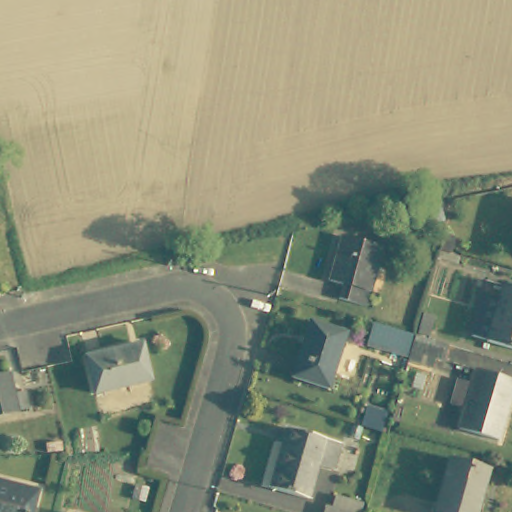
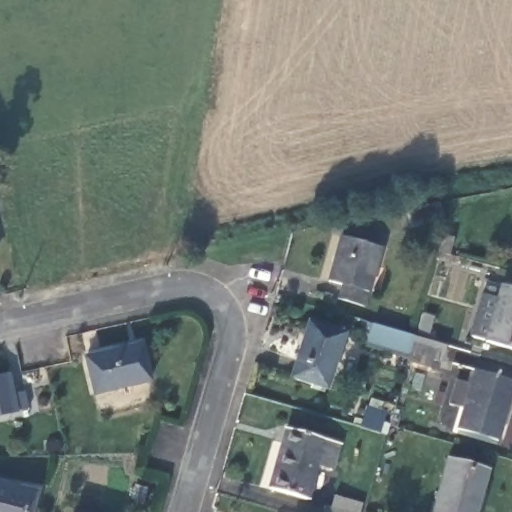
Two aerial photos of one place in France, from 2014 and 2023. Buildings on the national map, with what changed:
unchanged [(411,222),(409,215),(407,204),(414,202),(438,197),(441,216),(411,222)]
unchanged [(442,229),(456,233),(450,249),(437,245),(442,229)]
unchanged [(364,307),(340,300),(346,280),(331,277),(343,234),(381,244),(364,307)]
unchanged [(488,341),(503,284),(512,286),(512,347),(488,341)]
unchanged [(408,351),(413,334),(419,313),(433,317),(427,338),(437,340),(433,358),(408,351)]
unchanged [(333,389),(296,380),(311,322),(348,332),(333,389)]
unchanged [(150,379),(93,393),(84,357),(142,343),(150,379)]
unchanged [(498,439),(458,429),(474,369),(512,379),(512,385),(498,439)]
unchanged [(16,394),(21,413),(0,417),(0,383),(3,397),(16,394)]
unchanged [(334,466),(319,462),(309,497),(268,485),(285,426),(341,441),(334,466)]
unchanged [(480,512),(435,512),(451,453),(493,464),(480,512)]
unchanged [(0,480),(35,489),(29,512),(0,512),(0,480)]

